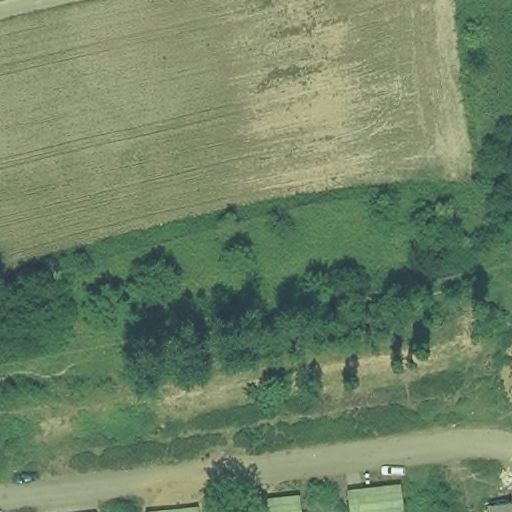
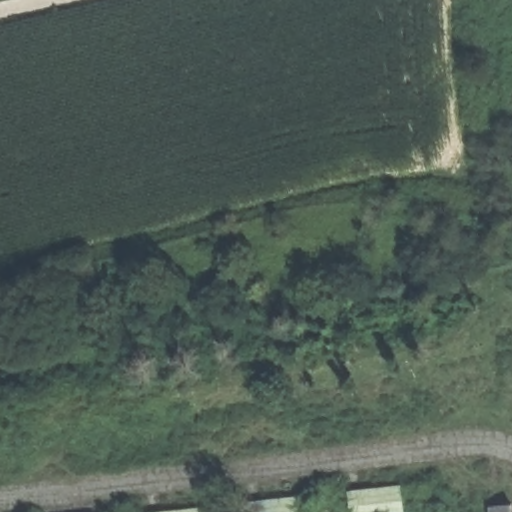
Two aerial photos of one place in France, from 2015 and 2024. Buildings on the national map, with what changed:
unchanged [(351,512),(349,490),(402,487),(404,512),(351,512)]
unchanged [(247,512),(247,502),(300,498),(302,512),(247,512)]
unchanged [(512,508),(512,512),(492,512),(492,508),(512,508)]
unchanged [(160,512),(201,509),(202,512),(160,512)]

